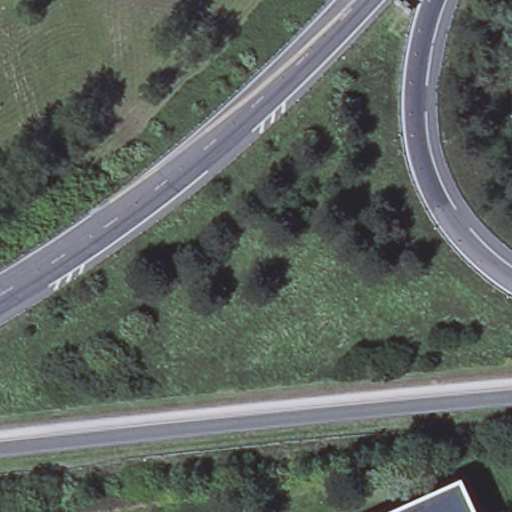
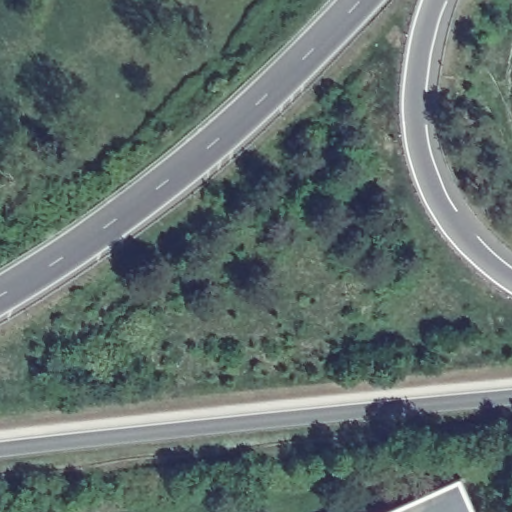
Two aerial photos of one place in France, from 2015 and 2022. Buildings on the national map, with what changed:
unchanged [(464,480),(477,512),(391,512),(464,480)]

